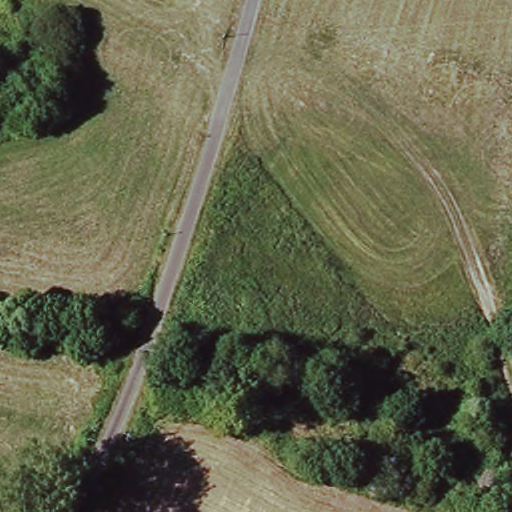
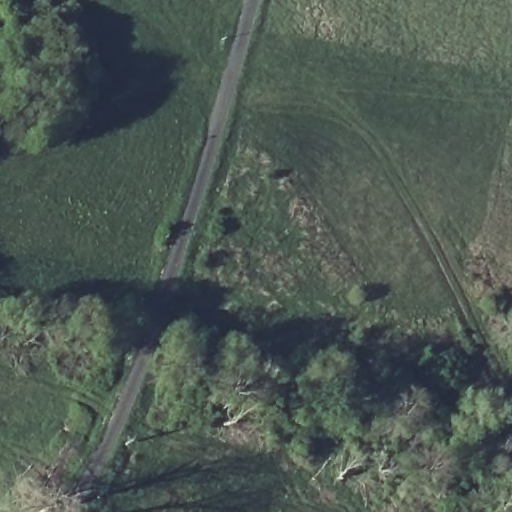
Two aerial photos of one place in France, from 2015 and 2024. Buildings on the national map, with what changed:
[]

